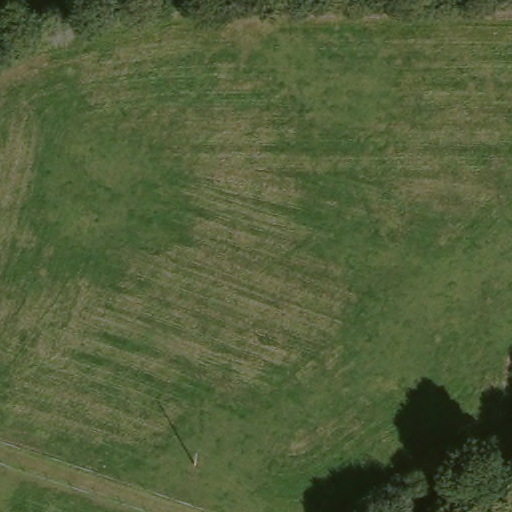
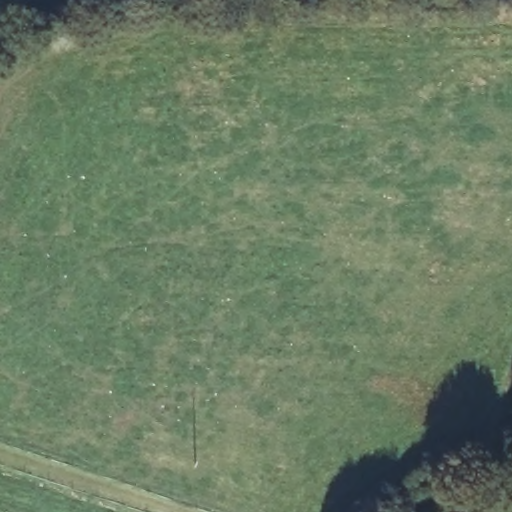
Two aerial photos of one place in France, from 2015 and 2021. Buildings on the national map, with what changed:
[]

